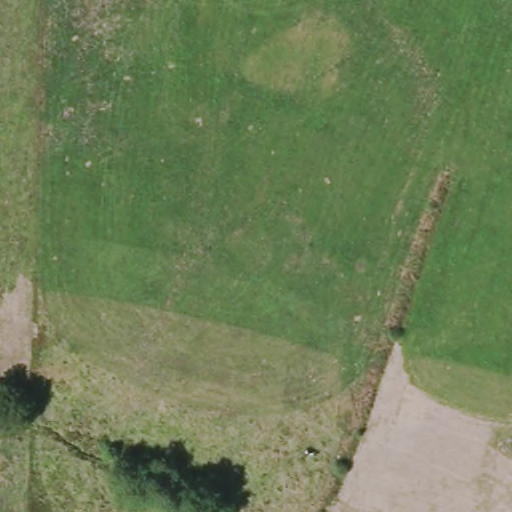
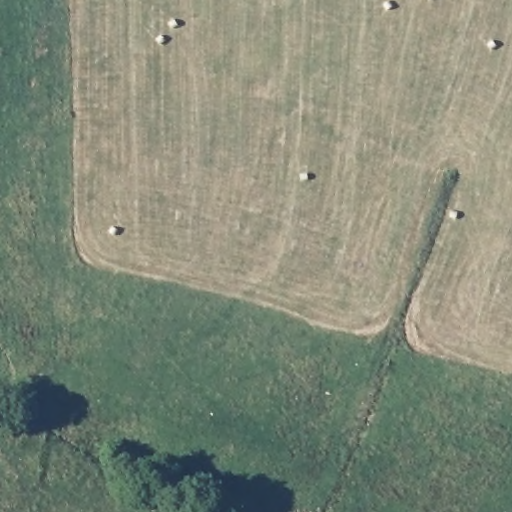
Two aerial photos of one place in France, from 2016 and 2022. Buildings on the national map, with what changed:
[]

